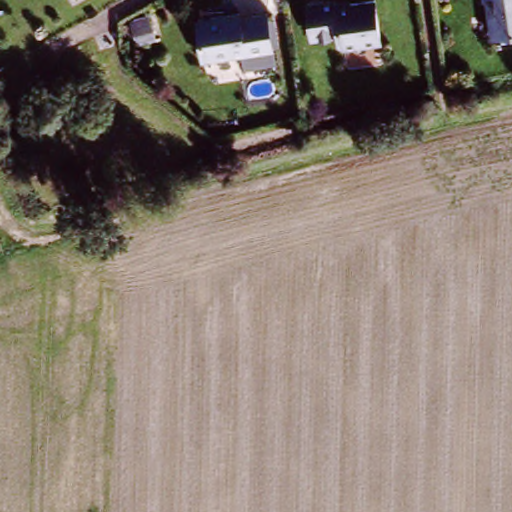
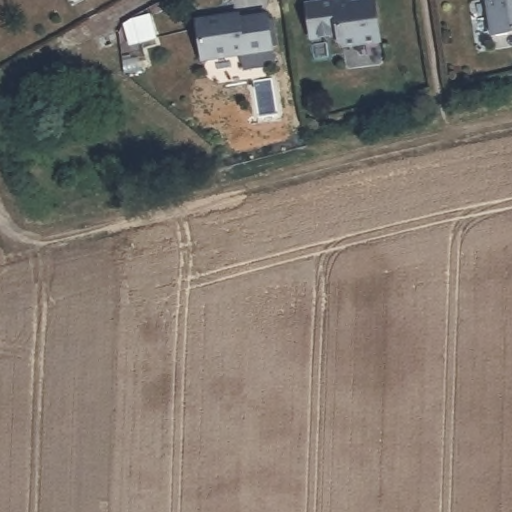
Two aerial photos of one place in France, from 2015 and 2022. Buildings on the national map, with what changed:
unchanged [(494,36),(488,0),(512,0),(512,33),(494,36)]
unchanged [(337,1),(339,6),(377,1),(383,42),(345,47),(340,44),(340,35),(314,39),(310,5),(337,1)]
unchanged [(232,16),(234,25),(270,19),(274,51),(200,61),(195,21),(232,16)]
unchanged [(162,36),(165,49),(152,53),(149,40),(162,36)]

